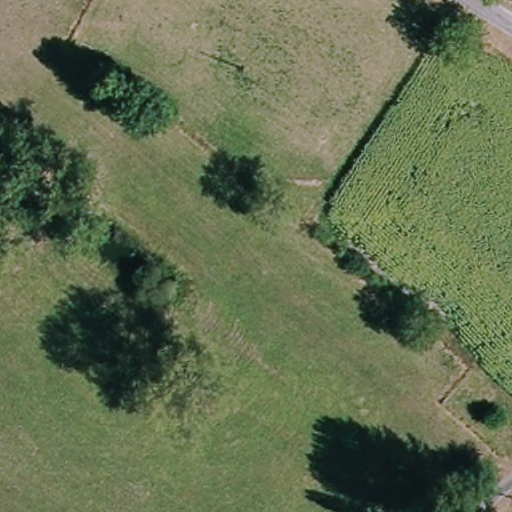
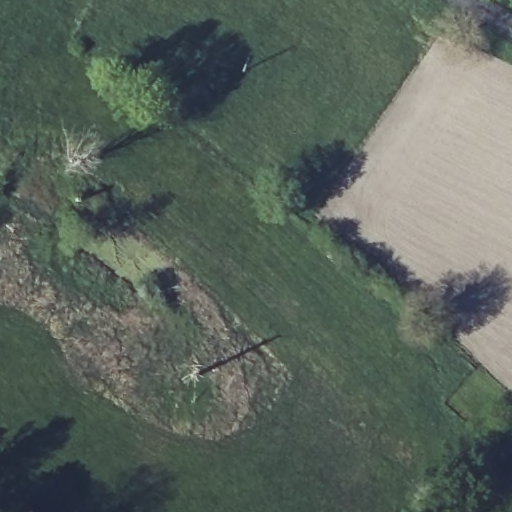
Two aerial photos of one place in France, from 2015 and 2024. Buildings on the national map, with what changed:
[]

